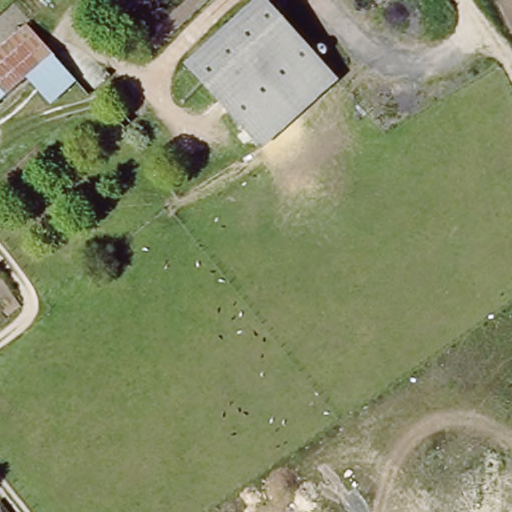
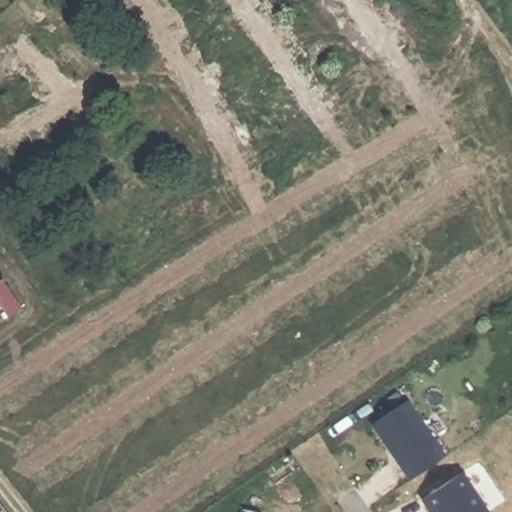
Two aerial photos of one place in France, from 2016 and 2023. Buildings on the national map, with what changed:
demolished [(263,0),(338,80),(261,153),(183,65),(259,0),(263,0)]
demolished [(76,82),(48,105),(28,81),(0,103),(0,45),(25,24),(76,82)]
new [(409,398),(448,455),(413,479),(374,422),(409,398)]
new [(488,512),(432,512),(424,500),(464,472),(491,510),(488,512)]

